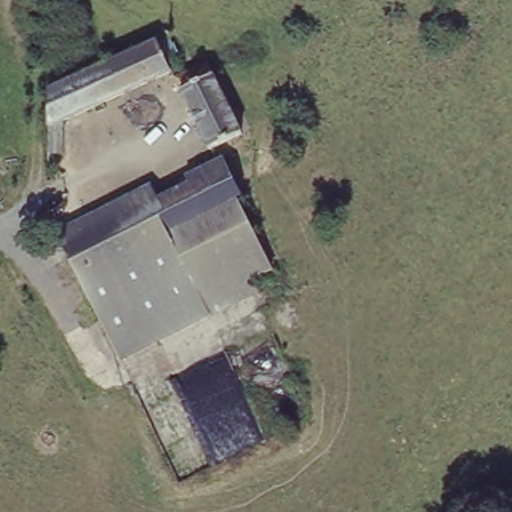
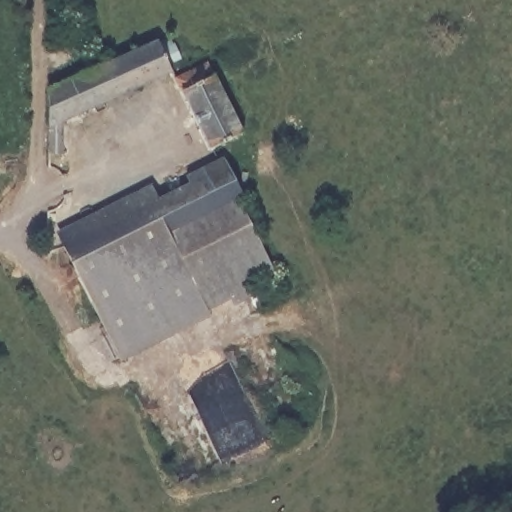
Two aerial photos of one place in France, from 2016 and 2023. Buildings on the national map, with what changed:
unchanged [(157,41),(159,44),(168,39),(172,47),(173,46),(179,59),(168,64),(172,73),(64,121),(64,155),(48,154),(49,90),(157,41)]
unchanged [(206,63),(242,135),(210,150),(176,79),(206,63)]
unchanged [(63,242),(189,179),(186,172),(203,162),(205,166),(224,156),(242,192),(237,195),(263,247),(263,249),(271,266),(246,278),(114,344),(63,242)]
unchanged [(246,278),(253,291),(121,357),(114,344),(246,278)]

